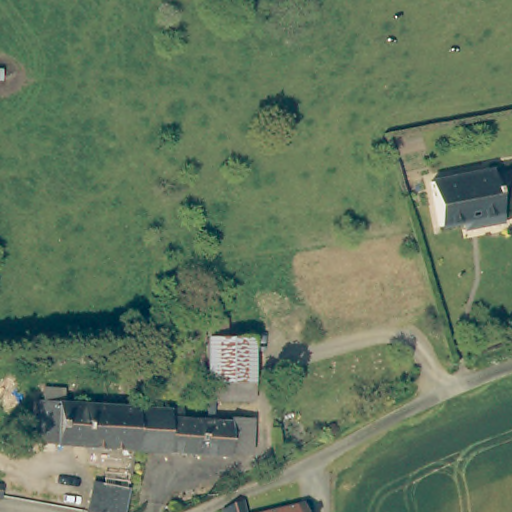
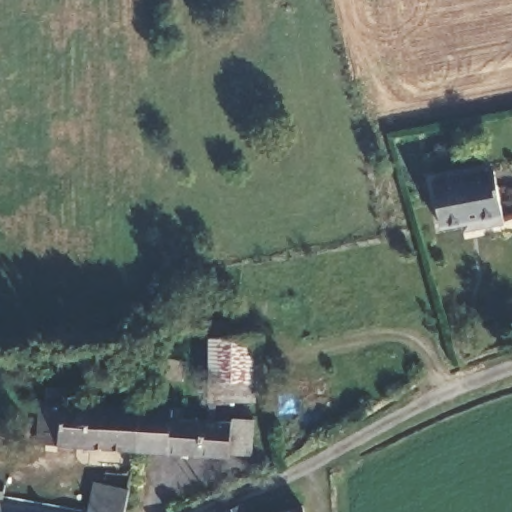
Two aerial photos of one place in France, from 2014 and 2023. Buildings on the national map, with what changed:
unchanged [(474,223),(473,218),(431,224),(424,178),(489,169),(497,219),(474,223)]
unchanged [(238,339),(254,357),(252,404),(207,401),(211,338),(238,339)]
unchanged [(31,436),(37,394),(133,402),(138,402),(131,447),(31,436)]
unchanged [(248,455),(224,452),(224,457),(131,447),(138,402),(169,407),(169,404),(183,405),(182,418),(221,423),(221,419),(228,420),(250,423),(248,455)]
unchanged [(3,497),(0,497),(0,482),(2,482),(3,497)]
unchanged [(89,512),(86,511),(91,483),(125,489),(122,512),(89,512)]
unchanged [(238,504),(240,512),(218,512),(218,510),(238,504)]
unchanged [(282,512),(301,507),(302,512),(282,512)]

